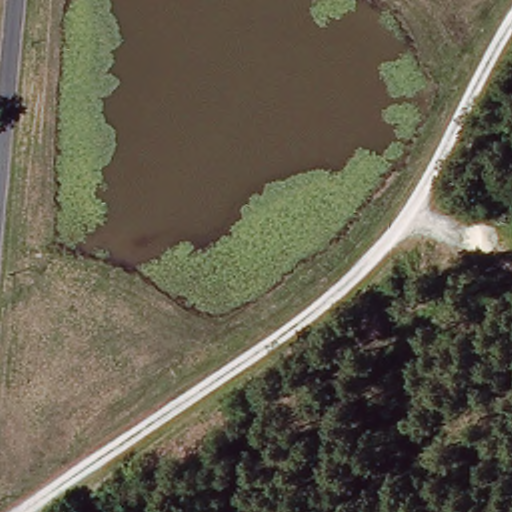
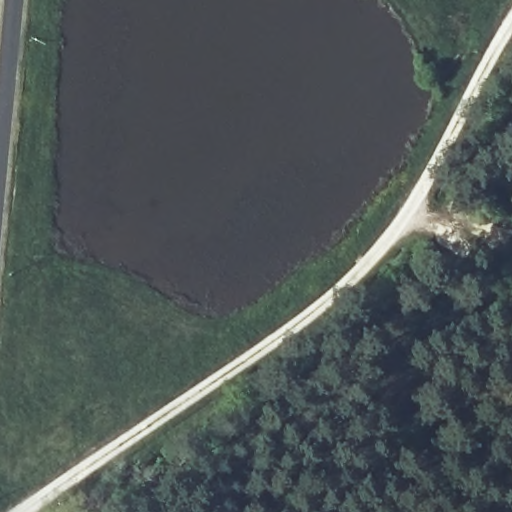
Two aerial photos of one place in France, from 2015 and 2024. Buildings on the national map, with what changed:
[]

